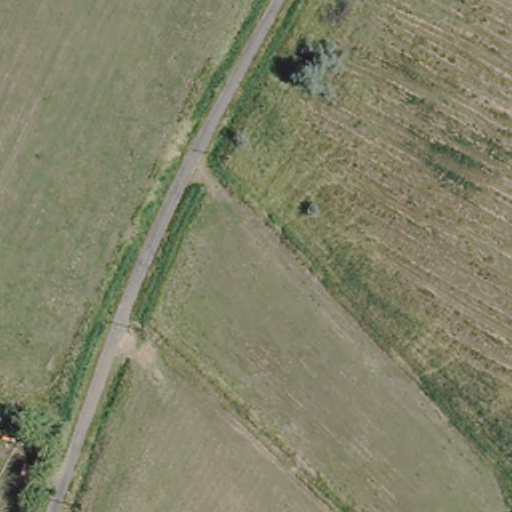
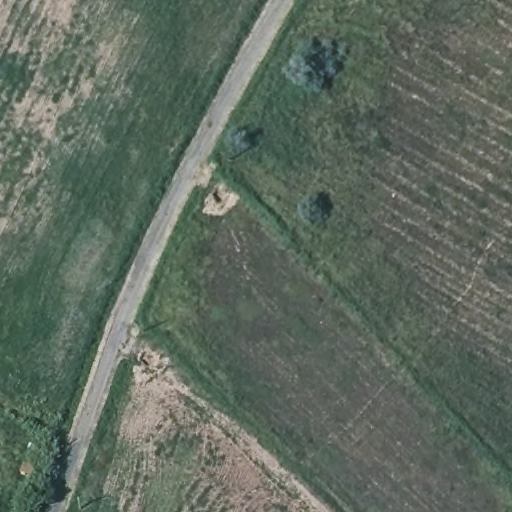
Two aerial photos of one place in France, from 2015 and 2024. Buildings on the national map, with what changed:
unchanged [(29,480),(22,475),(27,465),(33,469),(29,480)]

